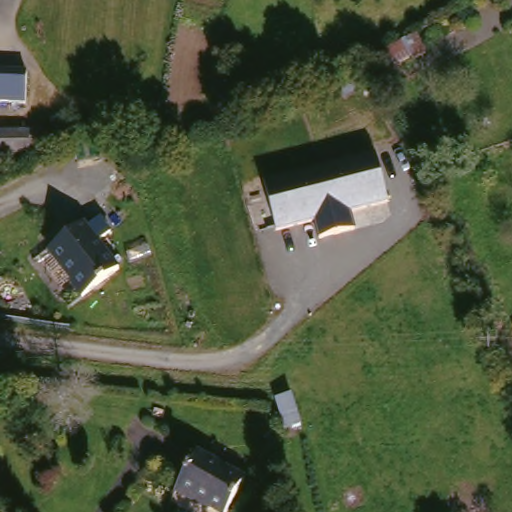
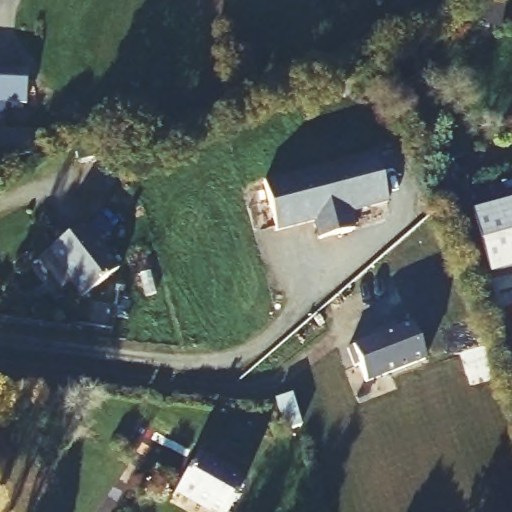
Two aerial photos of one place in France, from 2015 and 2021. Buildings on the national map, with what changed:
unchanged [(22,100),(0,98),(0,66),(24,67),(22,100)]
unchanged [(36,129),(37,157),(0,159),(0,129),(36,129)]
unchanged [(377,147),(393,194),(357,207),(362,224),(328,236),(322,219),(285,231),(269,184),(377,147)]
new [(512,273),(487,281),(466,220),(512,204),(512,273)]
unchanged [(80,295),(69,279),(72,277),(50,246),(85,221),(88,226),(102,217),(112,231),(99,240),(118,268),(80,295)]
new [(369,331),(368,327),(385,320),(387,325),(401,318),(416,353),(357,377),(350,360),(346,362),(338,344),(369,331)]
unchanged [(302,431),(275,433),(270,392),(297,390),(302,431)]
unchanged [(242,478),(225,512),(217,512),(173,488),(195,451),(242,478)]

